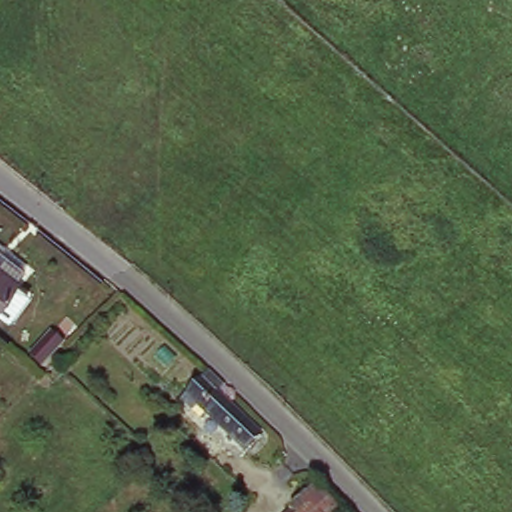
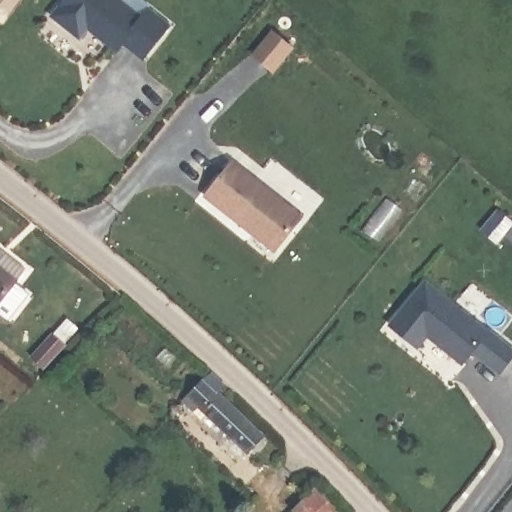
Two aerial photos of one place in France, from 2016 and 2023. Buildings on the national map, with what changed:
new [(170,31),(142,66),(94,37),(87,50),(41,19),(52,0),(123,0),(170,31)]
new [(270,33),(293,52),(270,78),(248,60),(270,33)]
new [(240,160),(308,216),(275,252),(209,197),(240,160)]
demolished [(390,188),(430,229),(415,243),(375,201),(390,188)]
unchanged [(0,301),(0,253),(24,271),(0,301)]
new [(510,355),(495,372),(468,350),(459,364),(423,335),(414,346),(388,325),(421,284),(510,355)]
new [(50,332),(67,347),(42,373),(26,356),(50,332)]
unchanged [(225,383),(220,388),(263,435),(250,450),(205,407),(200,412),(187,399),(214,372),(225,383)]
unchanged [(334,509),(331,512),(284,512),(312,485),(334,509)]

